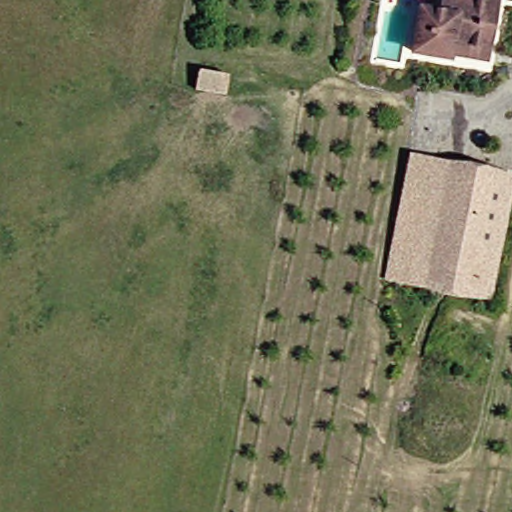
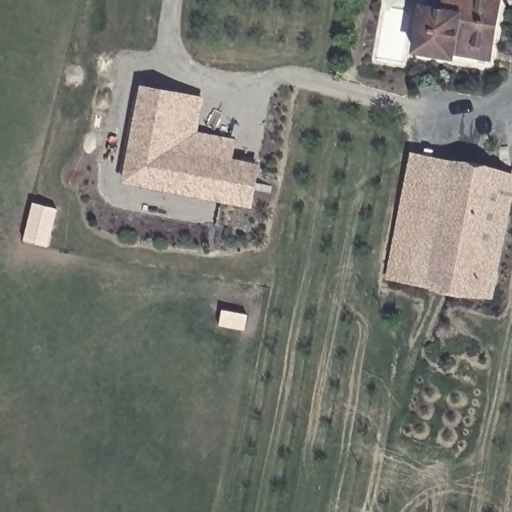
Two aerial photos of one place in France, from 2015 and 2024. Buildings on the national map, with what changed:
unchanged [(455,55),(455,57),(417,50),(426,5),(447,10),(449,0),(504,0),(503,4),(494,48),(492,61),(455,55)]
new [(138,84),(198,95),(187,150),(253,162),(246,200),(256,202),(252,230),(222,224),(227,199),(120,177),(138,84)]
new [(198,95),(217,99),(211,134),(257,142),(253,162),(187,150),(198,95)]
unchanged [(429,156),(510,174),(482,296),(400,278),(429,156)]

